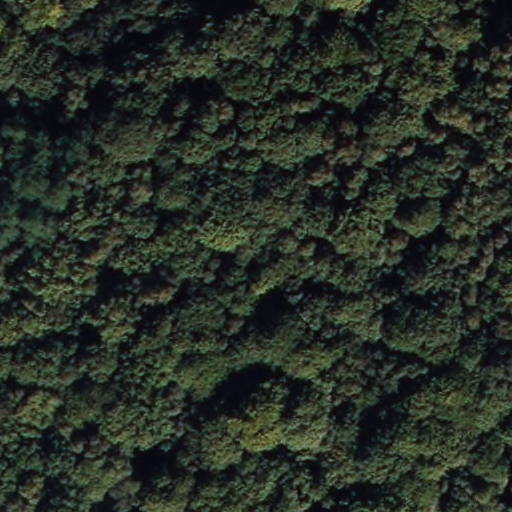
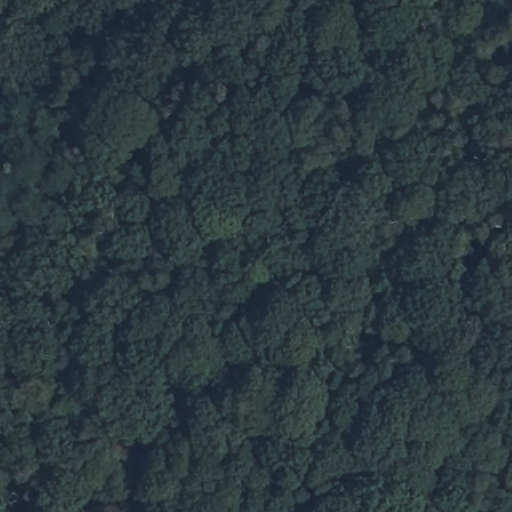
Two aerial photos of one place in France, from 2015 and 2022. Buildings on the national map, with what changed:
[]

